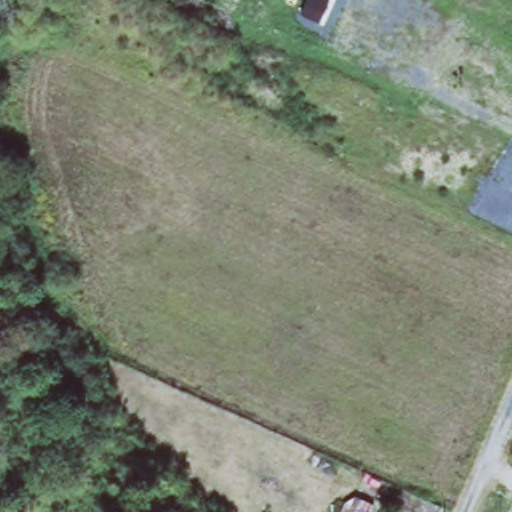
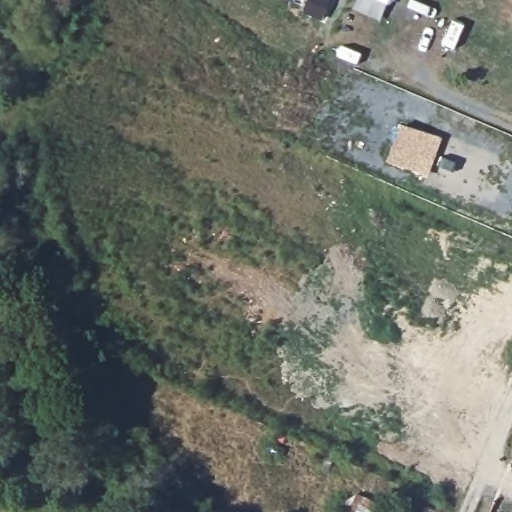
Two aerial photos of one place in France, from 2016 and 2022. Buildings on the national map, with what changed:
new [(387,164),(400,125),(442,139),(427,177),(387,164)]

